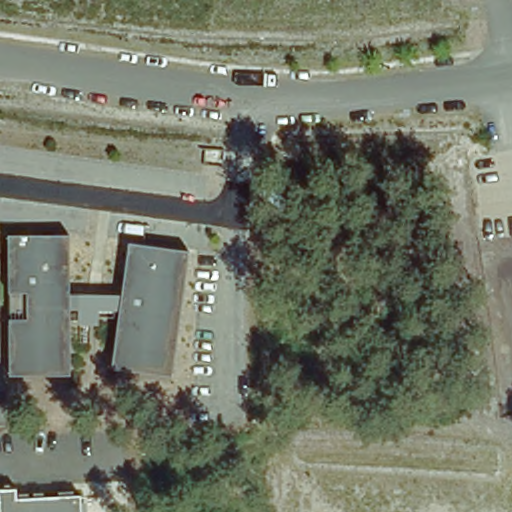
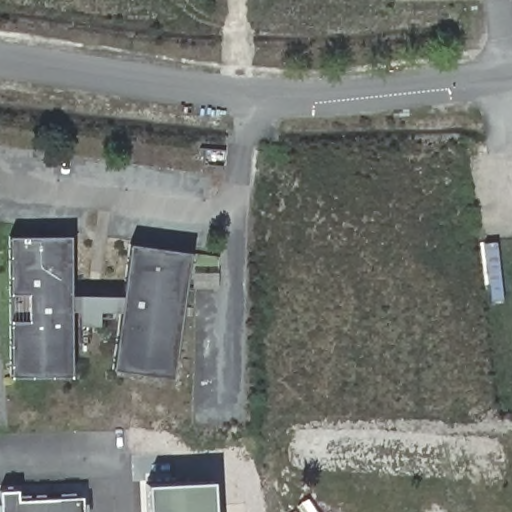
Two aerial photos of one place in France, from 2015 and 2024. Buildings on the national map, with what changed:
unchanged [(11,378),(9,235),(70,235),(72,376),(11,378)]
unchanged [(172,377),(113,370),(131,244),(189,252),(172,377)]
new [(203,482),(203,485),(209,485),(210,512),(149,512),(147,486),(203,482)]
unchanged [(17,502),(81,499),(82,512),(1,512),(0,502),(0,490),(17,488),(17,502)]

